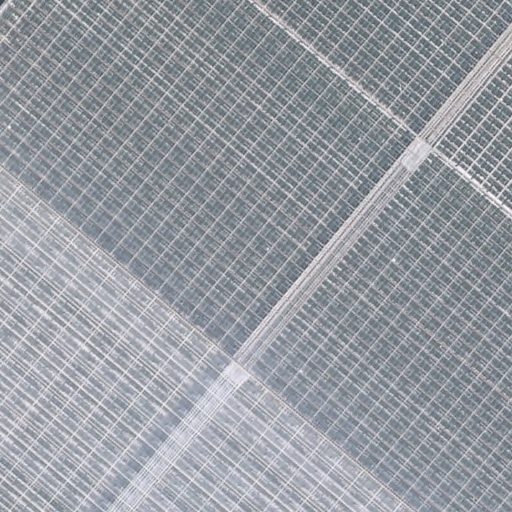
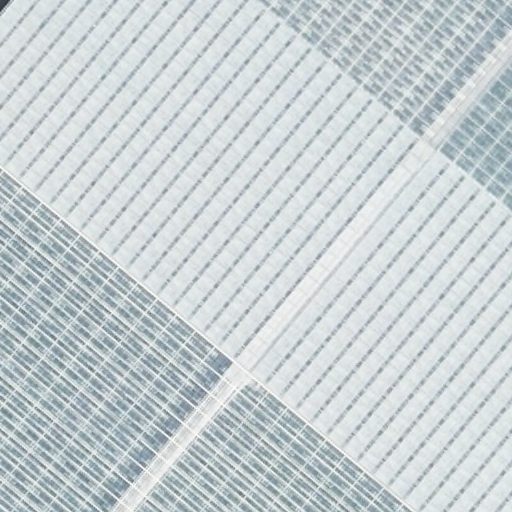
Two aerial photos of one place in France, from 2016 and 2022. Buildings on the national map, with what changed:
unchanged [(512,0),(512,512),(0,512),(0,15),(12,0),(512,0)]

